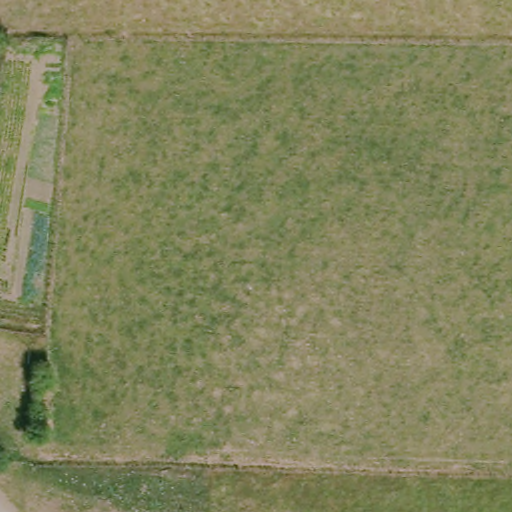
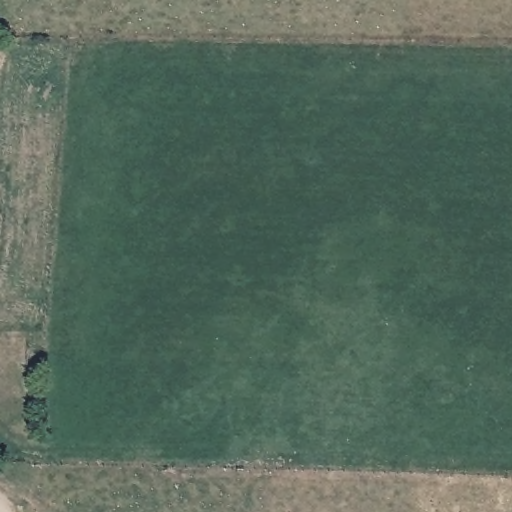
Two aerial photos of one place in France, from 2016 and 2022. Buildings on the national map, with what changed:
[]

